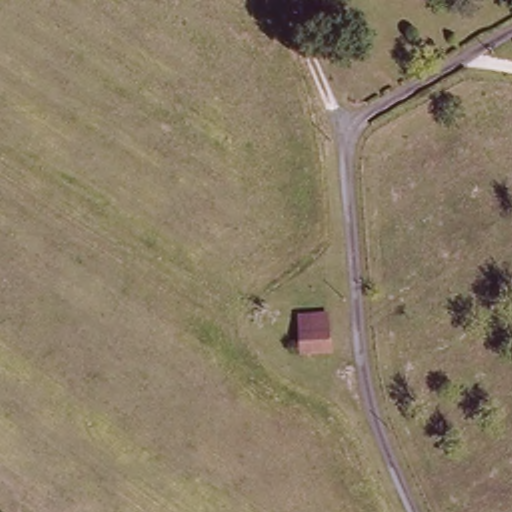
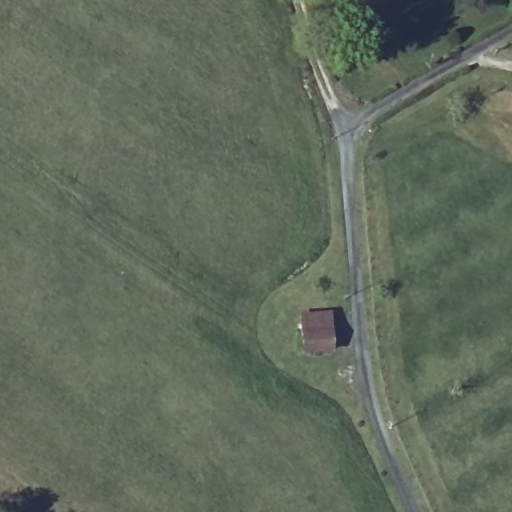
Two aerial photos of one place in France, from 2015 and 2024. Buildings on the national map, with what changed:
unchanged [(332,361),(301,360),(298,320),(330,316),(332,361)]

